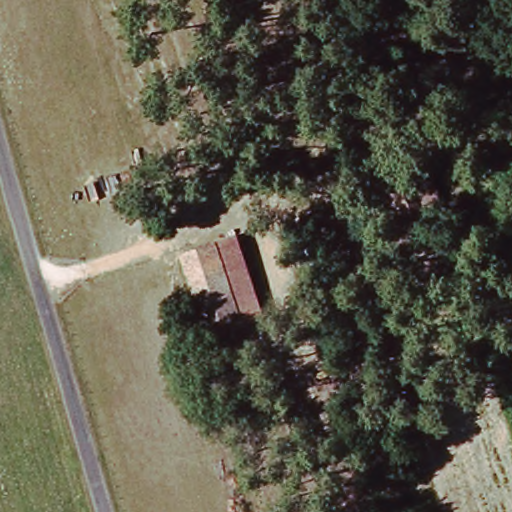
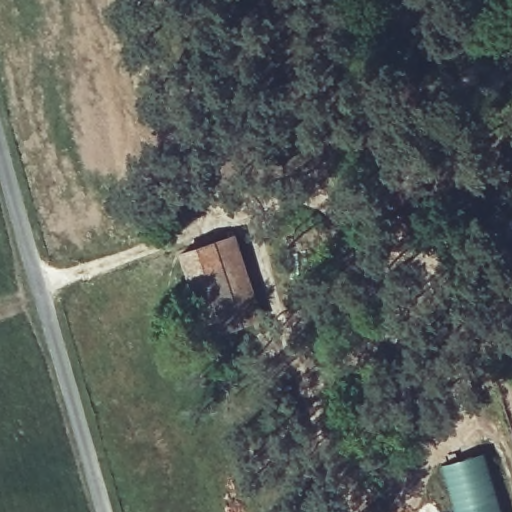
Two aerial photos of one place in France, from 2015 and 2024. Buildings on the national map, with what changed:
unchanged [(441,191),(416,199),(410,184),(435,175),(441,191)]
unchanged [(420,250),(403,204),(416,199),(432,245),(420,250)]
unchanged [(233,235),(261,315),(240,323),(214,241),(233,235)]
unchanged [(214,241),(240,323),(205,334),(179,252),(214,241)]
new [(497,512),(459,512),(445,464),(483,453),(497,512)]

